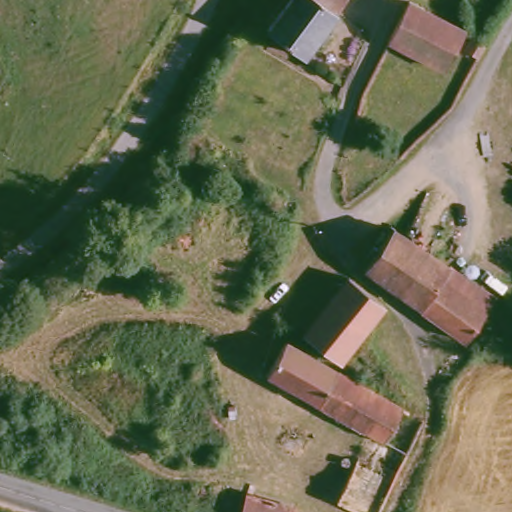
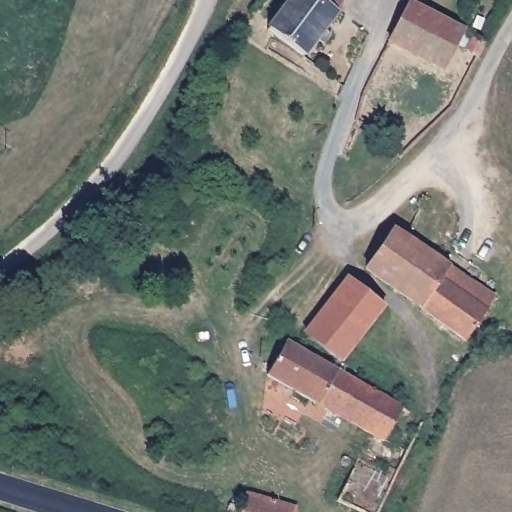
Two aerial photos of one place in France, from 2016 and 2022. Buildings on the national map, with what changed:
unchanged [(302,58),(263,33),(286,0),(338,0),(331,11),(335,13),(322,31),(329,36),(322,45),(315,40),(302,58)]
unchanged [(438,70),(384,42),(406,0),(409,0),(460,29),(438,70)]
unchanged [(459,51),(468,34),(483,41),(475,60),(459,51)]
unchanged [(348,199),(325,184),(333,166),(362,189),(348,199)]
unchanged [(460,341),(415,306),(358,271),(385,234),(484,295),(460,342),(460,341)]
unchanged [(303,330),(330,294),(350,269),(382,296),(372,311),(343,355),(303,330)]
unchanged [(365,433),(255,372),(269,344),(278,348),(285,342),(422,416),(375,512),(356,512),(336,503),(365,433)]
unchanged [(294,503),(291,512),(237,512),(245,488),(294,503)]

